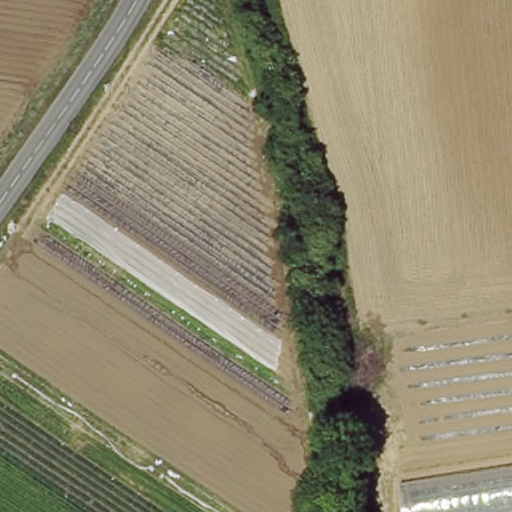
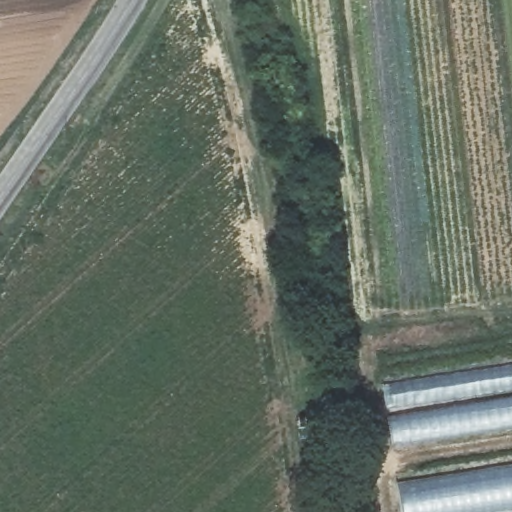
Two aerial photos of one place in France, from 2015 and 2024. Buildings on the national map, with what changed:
new [(393,450),(383,381),(512,362),(512,430),(393,450)]
unchanged [(512,467),(512,512),(403,512),(399,485),(512,467)]

